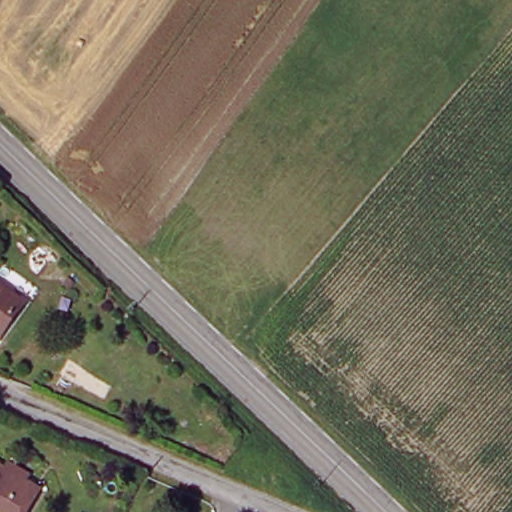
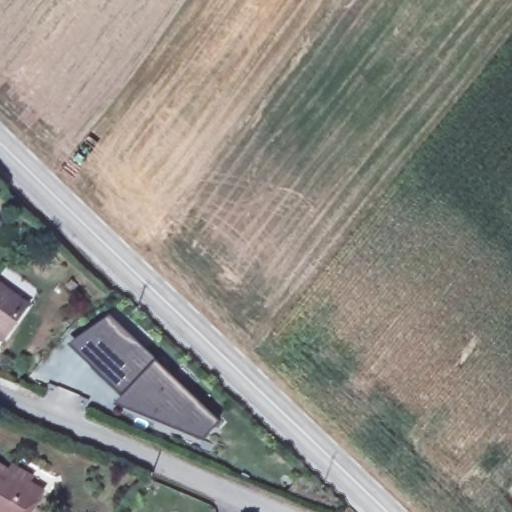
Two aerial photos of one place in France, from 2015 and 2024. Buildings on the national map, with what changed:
unchanged [(30,306),(4,339),(0,336),(0,286),(30,306)]
new [(106,326),(133,352),(119,366),(107,355),(88,375),(66,354),(106,326)]
new [(196,445),(171,433),(129,415),(132,408),(122,400),(118,404),(88,375),(107,355),(119,366),(133,352),(151,370),(153,368),(192,407),(213,428),(196,445)]
unchanged [(20,512),(0,512),(0,468),(35,490),(20,512)]

